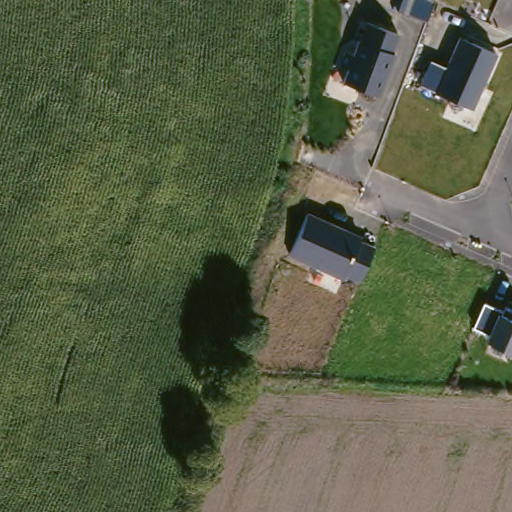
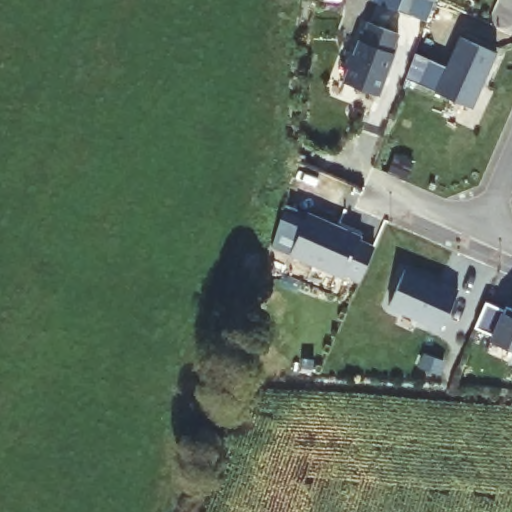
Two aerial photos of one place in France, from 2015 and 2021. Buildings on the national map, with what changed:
unchanged [(396,0),(429,0),(423,13),(395,3),(396,0)]
unchanged [(348,69),(342,65),(347,51),(353,54),(358,40),(362,42),(369,24),(400,33),(378,95),(342,82),(348,69)]
unchanged [(459,36),(495,51),(471,104),(436,90),(459,36)]
unchanged [(362,235),(360,240),(375,246),(359,281),(344,273),(342,278),(290,255),(307,213),(362,235)]
new [(401,261),(435,276),(436,273),(454,281),(437,320),(385,297),(401,261)]
unchanged [(490,334),(475,327),(485,302),(502,310),(505,306),(512,308),(512,349),(488,340),(490,334)]

